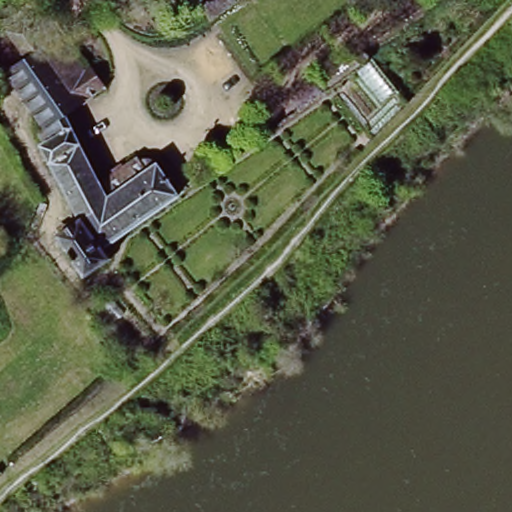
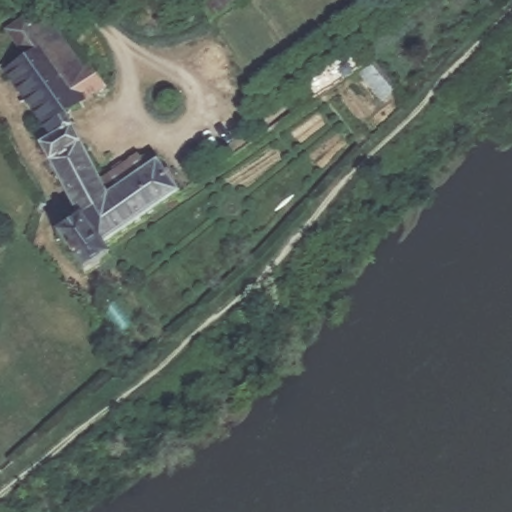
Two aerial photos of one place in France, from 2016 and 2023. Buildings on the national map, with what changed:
unchanged [(239,6),(199,34),(185,0),(235,0),(239,6)]
unchanged [(150,153),(178,193),(100,251),(104,260),(83,275),(57,238),(74,223),(36,148),(46,139),(3,72),(33,50),(10,18),(30,3),(80,72),(88,67),(101,86),(64,115),(100,183),(146,149),(150,153)]
unchanged [(373,60),(396,88),(384,99),(359,71),(373,60)]

